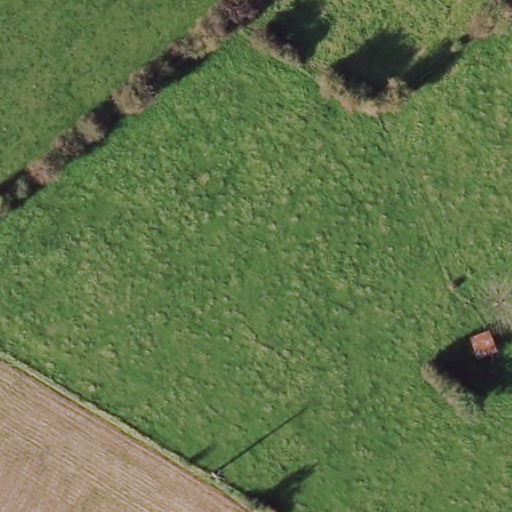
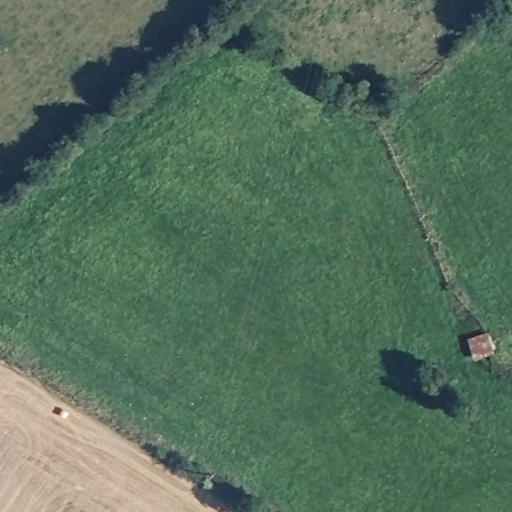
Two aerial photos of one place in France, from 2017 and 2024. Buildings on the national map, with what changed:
unchanged [(490,339),(504,349),(485,375),(471,364),(490,339)]

